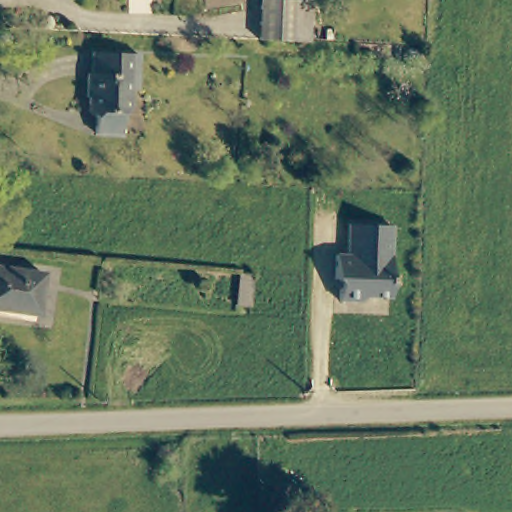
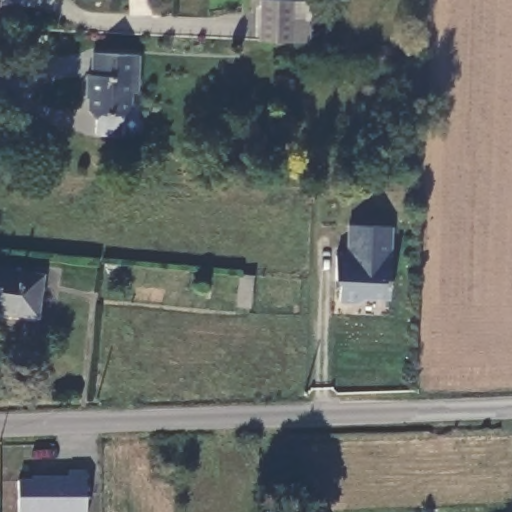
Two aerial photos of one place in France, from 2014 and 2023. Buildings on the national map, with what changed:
unchanged [(261,36),(262,0),(311,0),(310,37),(261,36)]
unchanged [(136,94),(130,93),(130,110),(119,121),(119,137),(96,137),(97,113),(88,113),(88,101),(84,101),(85,79),(89,80),(90,57),(138,59),(136,94)]
unchanged [(335,282),(335,258),(347,258),(347,228),(391,229),(390,300),(366,300),(361,304),(339,303),(340,287),(335,282)]
unchanged [(0,311),(0,270),(41,275),(36,315),(0,311)]
unchanged [(243,307),(228,306),(231,275),(246,277),(243,307)]
new [(44,488),(43,486),(68,485),(68,479),(85,478),(84,512),(17,512),(18,490),(44,488)]

